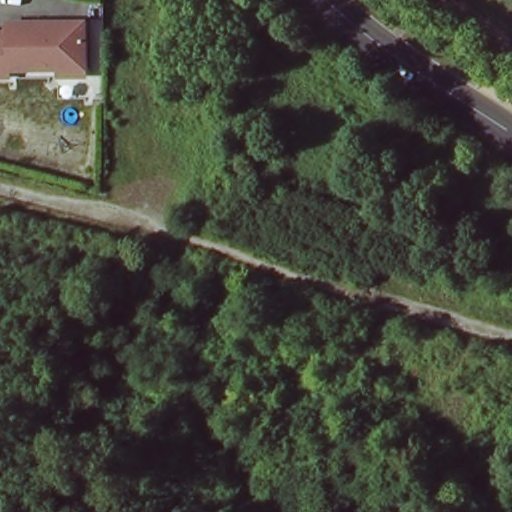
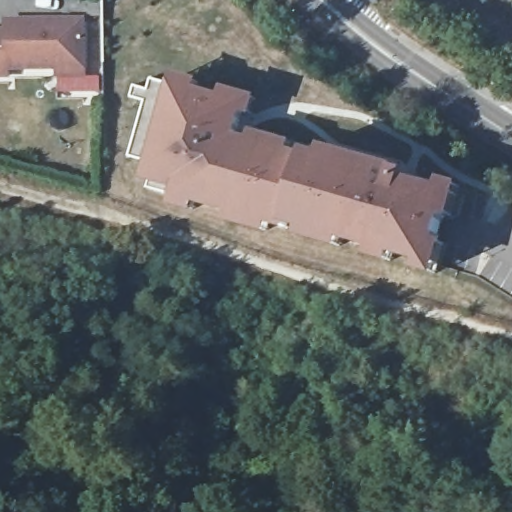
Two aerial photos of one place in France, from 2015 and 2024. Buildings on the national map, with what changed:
unchanged [(7,30),(8,23),(88,21),(92,77),(60,78),(60,71),(15,72),(15,79),(0,79),(0,30),(7,30)]
new [(176,84),(178,75),(258,98),(254,115),(245,112),(241,128),(326,150),(328,145),(388,161),(388,158),(445,174),(443,180),(462,184),(435,265),(288,222),(285,235),(173,203),(177,186),(150,178),(151,170),(146,169),(147,160),(128,155),(150,77),(176,84)]

